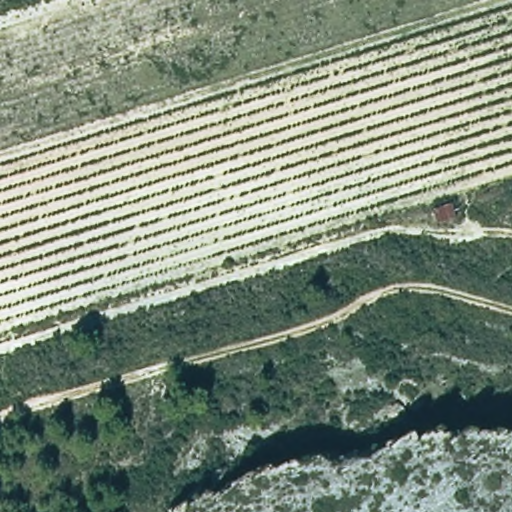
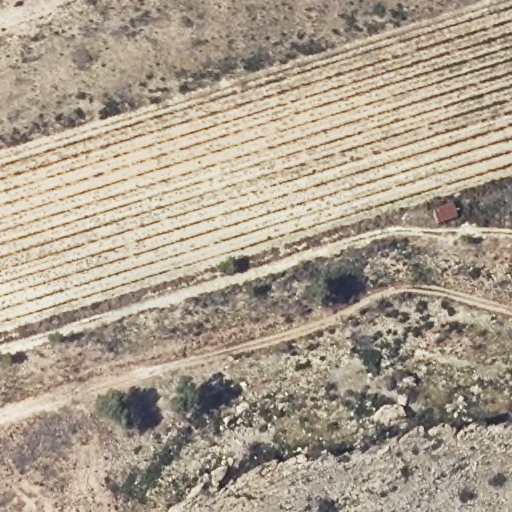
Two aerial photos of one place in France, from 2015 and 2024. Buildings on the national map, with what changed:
unchanged [(433,211),(454,204),(459,220),(438,226),(433,211)]

